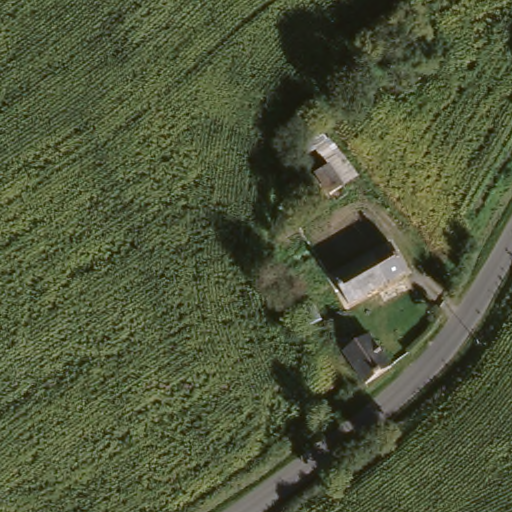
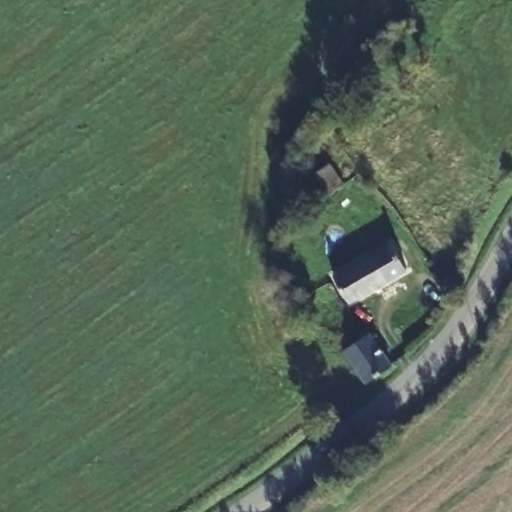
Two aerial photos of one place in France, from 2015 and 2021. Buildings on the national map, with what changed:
unchanged [(326,122),(336,136),(322,145),(313,131),(326,122)]
unchanged [(404,264),(349,297),(331,270),(387,237),(404,264)]
unchanged [(339,337),(357,326),(364,338),(372,334),(394,364),(369,383),(339,337)]

